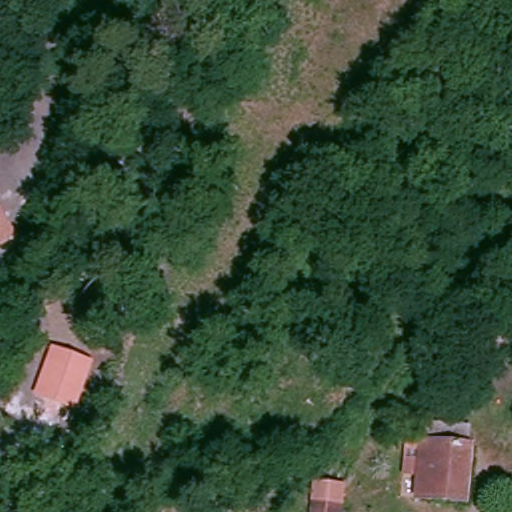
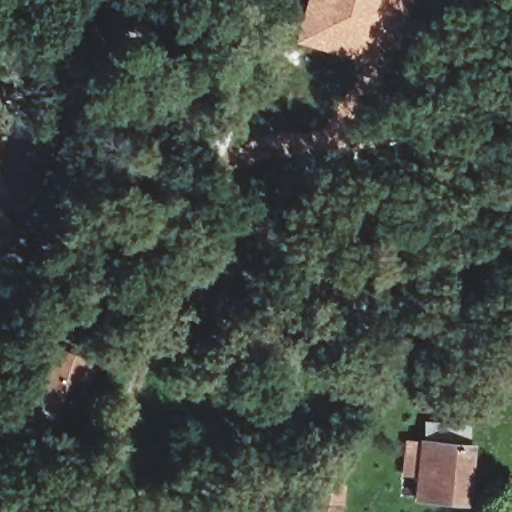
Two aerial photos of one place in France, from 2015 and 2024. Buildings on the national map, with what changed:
new [(411,0),(394,64),(387,64),(386,66),(347,59),(291,42),(303,0),(411,0)]
unchanged [(17,238),(0,247),(0,210),(17,238)]
unchanged [(50,346),(93,362),(77,411),(33,395),(50,346)]
unchanged [(423,499),(399,496),(403,445),(426,446),(423,499)]
unchanged [(474,450),(473,505),(423,499),(426,446),(474,450)]
unchanged [(310,488),(338,489),(337,512),(309,512),(310,488)]

